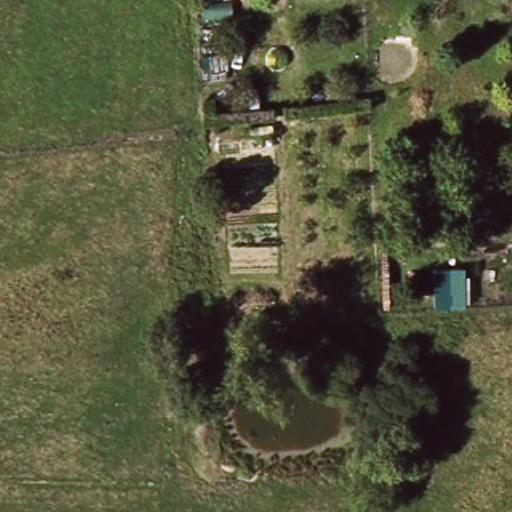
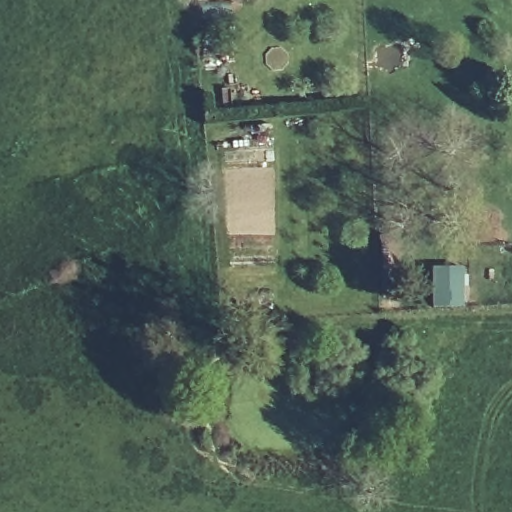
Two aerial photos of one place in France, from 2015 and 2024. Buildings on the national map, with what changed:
unchanged [(464,308),(433,308),(433,268),(464,268),(464,308)]

